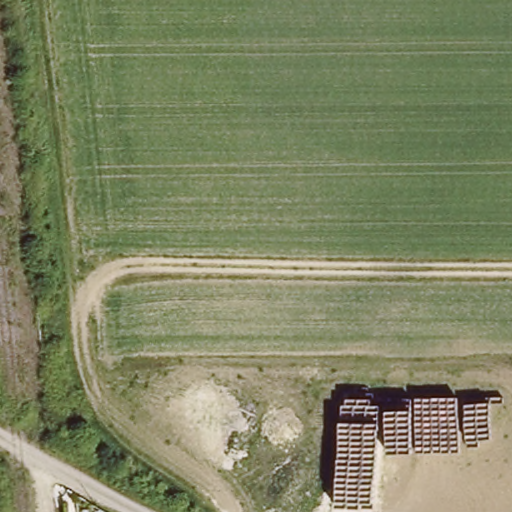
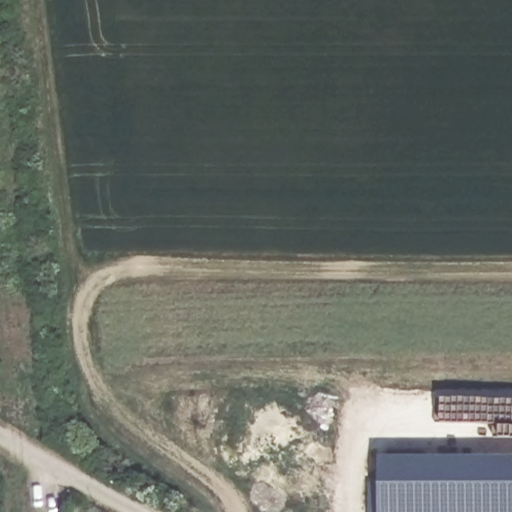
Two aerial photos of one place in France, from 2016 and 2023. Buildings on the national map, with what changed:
new [(512,456),(512,512),(379,512),(378,456),(512,456)]

